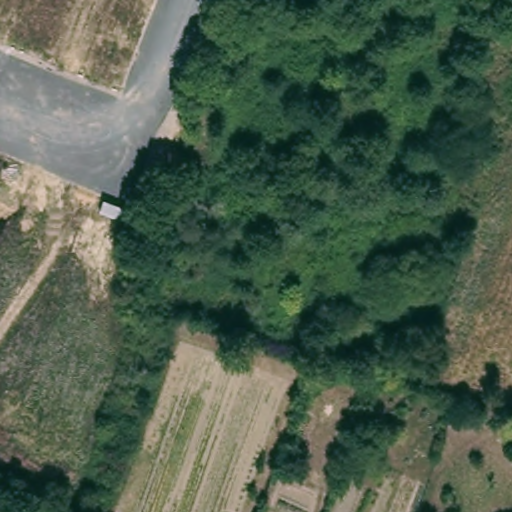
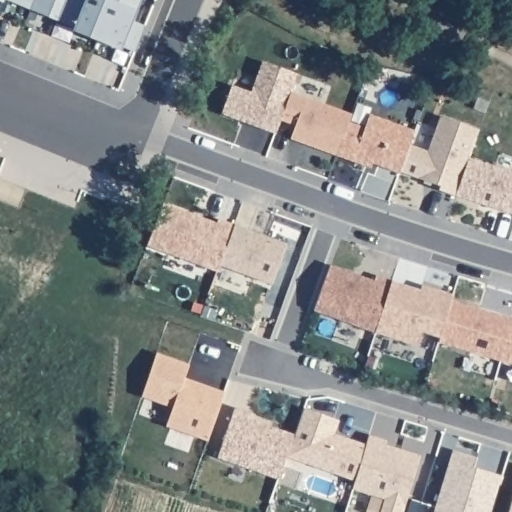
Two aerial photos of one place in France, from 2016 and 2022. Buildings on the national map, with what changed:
new [(131,21),(145,27),(135,50),(122,45),(120,48),(75,30),(76,26),(64,21),(57,19),(10,0),(78,0),(86,3),(87,0),(140,0),(131,21)]
new [(222,112),(232,84),(252,91),(263,60),(297,72),(291,90),(281,118),(276,131),(260,126),(241,119),(222,112)]
new [(291,90),(352,113),(349,120),(337,154),(291,137),(296,124),(281,118),(291,90)]
new [(349,120),(365,126),(370,112),(415,129),(410,143),(401,169),(400,171),(372,161),(371,166),(337,154),(349,120)]
new [(410,143),(428,149),(441,114),(480,128),(469,156),(456,193),(455,194),(439,188),(441,184),(401,169),(410,143)]
new [(469,156),(512,170),(512,212),(456,193),(469,156)]
new [(190,212),(202,216),(217,222),(219,218),(235,224),(220,264),(217,271),(147,245),(163,202),(190,212)]
new [(235,224),(287,243),(272,283),(220,264),(235,224)]
new [(331,263),(375,280),(377,274),(392,279),(376,331),(376,332),(314,309),(331,263)]
new [(409,285),(421,288),(422,283),(453,294),(452,299),(441,336),(422,330),(417,345),(376,331),(392,279),(409,285)]
new [(441,336),(452,299),(512,317),(500,360),(439,341),(441,336)]
new [(512,317),(512,363),(500,360),(512,317)]
new [(217,456),(235,406),(251,412),(250,418),(292,433),(278,477),(217,456)]
new [(286,456),(293,433),(303,408),(338,420),(333,433),(366,445),(355,480),(286,456)]
new [(387,440),(386,444),(418,455),(403,512),(380,512),(384,498),(353,487),(370,434),(387,440)]
new [(477,457),(474,467),(502,476),(491,512),(434,512),(453,450),(477,457)]
new [(509,512),(512,501),(512,512),(509,512)]

